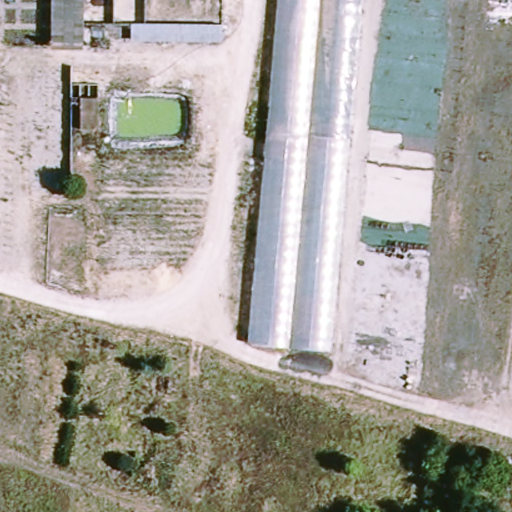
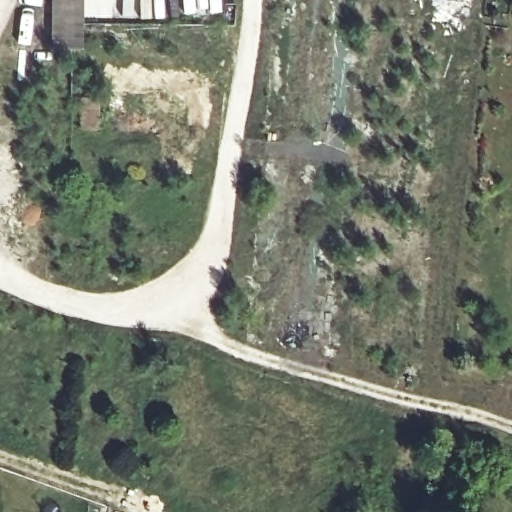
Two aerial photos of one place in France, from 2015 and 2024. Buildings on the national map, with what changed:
unchanged [(53,0),(84,0),(84,46),(52,46),(53,0)]
demolished [(364,0),(331,348),(250,343),(279,0),(364,0)]
demolished [(110,40),(110,25),(223,23),(222,41),(110,40)]

